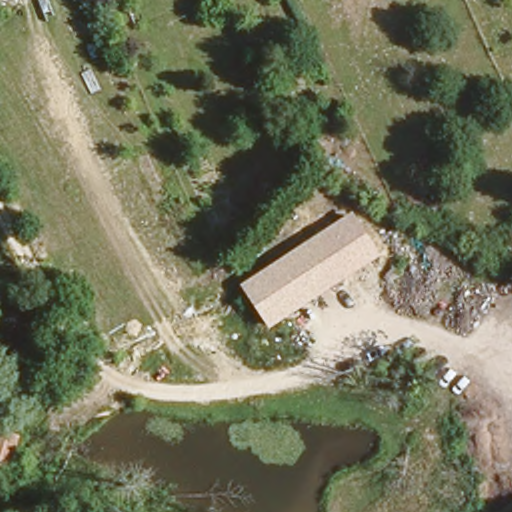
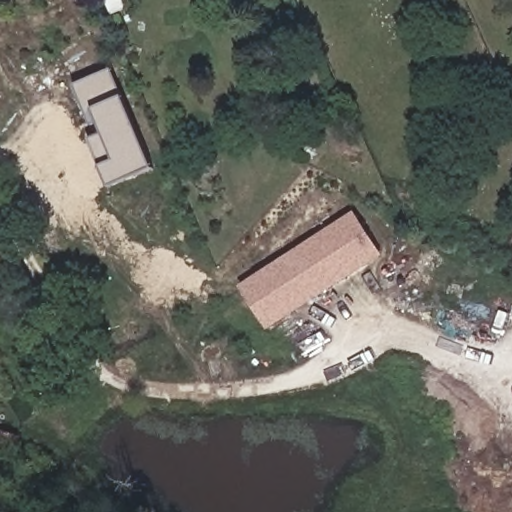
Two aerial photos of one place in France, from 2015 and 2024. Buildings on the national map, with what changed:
new [(93,112),(86,115),(73,86),(109,70),(152,168),(109,187),(88,139),(102,133),(93,112)]
unchanged [(269,329),(241,286),(353,213),(379,254),(269,329)]
unchanged [(512,240),(512,244),(511,243),(512,240)]
unchanged [(44,393),(29,402),(16,379),(31,370),(44,393)]

